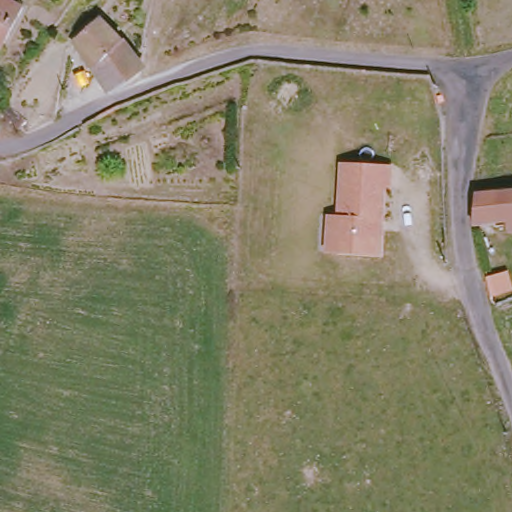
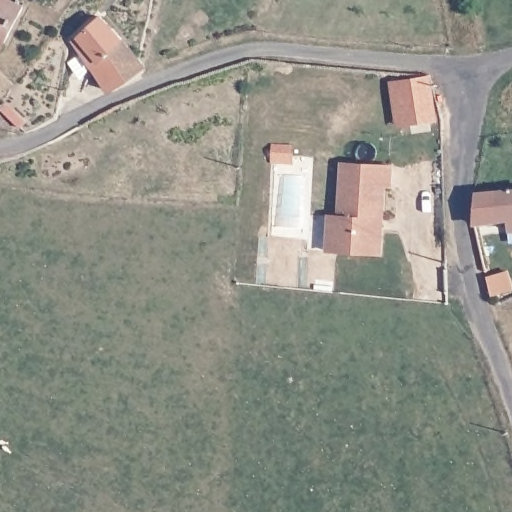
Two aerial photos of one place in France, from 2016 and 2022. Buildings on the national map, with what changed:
unchanged [(0,30),(0,0),(2,0),(13,7),(0,30)]
unchanged [(124,73),(108,85),(70,37),(100,13),(137,54),(140,57),(124,73)]
new [(396,128),(388,82),(431,76),(437,121),(396,128)]
unchanged [(333,219),(337,165),(390,168),(390,192),(384,192),(381,259),(324,256),(325,218),(333,219)]
unchanged [(505,231),(505,221),(470,222),(470,193),(474,193),(512,193),(512,230),(505,231)]

